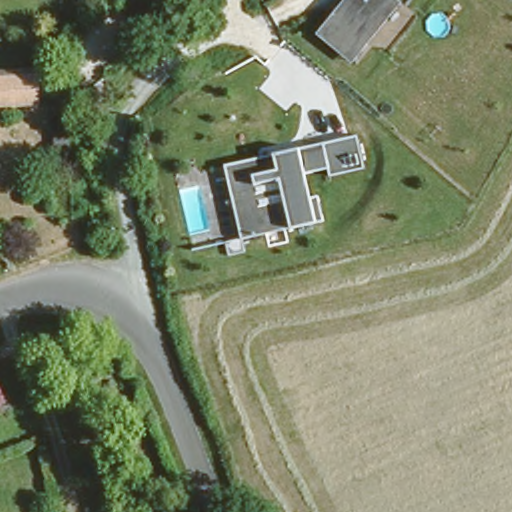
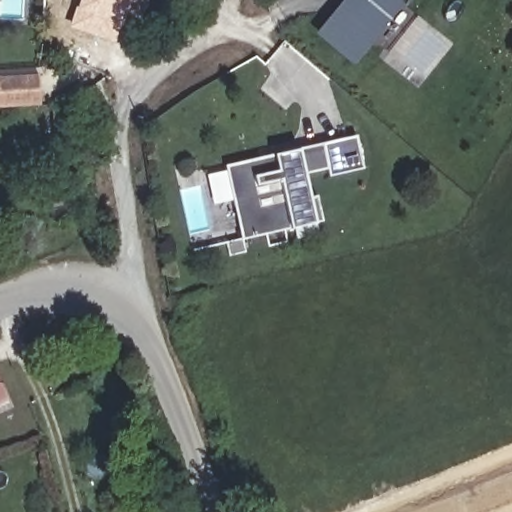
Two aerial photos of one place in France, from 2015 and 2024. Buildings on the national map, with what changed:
new [(75,6),(77,0),(146,0),(139,18),(124,14),(120,25),(118,24),(115,41),(69,28),(74,6),(75,6)]
unchanged [(341,0),(397,0),(349,63),(315,34),(341,0)]
unchanged [(39,73),(40,106),(0,106),(0,75),(39,73)]
unchanged [(59,138),(55,109),(68,108),(71,136),(59,138)]
unchanged [(365,166),(328,169),(327,165),(303,169),(309,201),(321,194),(328,218),(318,223),(290,227),(244,234),(225,161),(273,153),(299,148),(360,134),(365,166)]
unchanged [(0,392),(0,375),(6,390),(0,392)]

